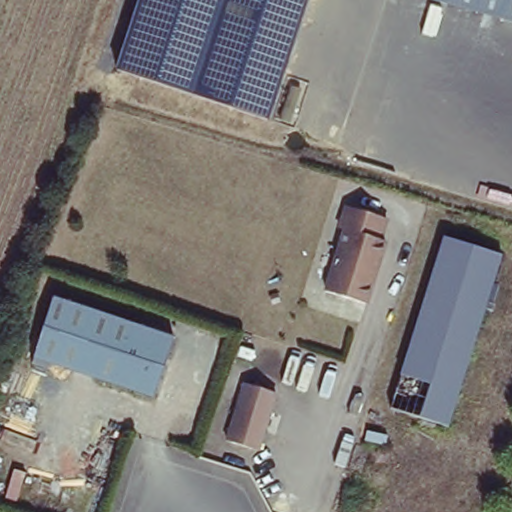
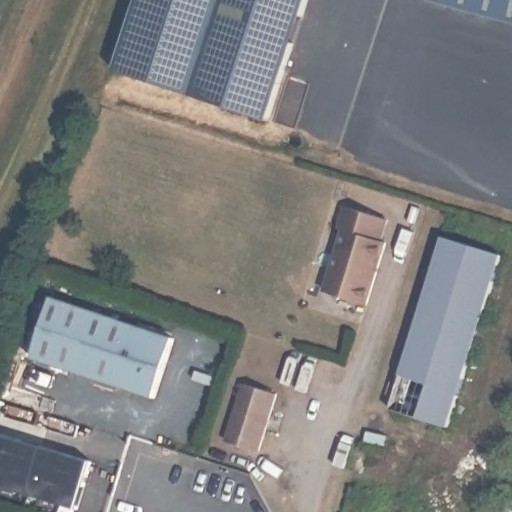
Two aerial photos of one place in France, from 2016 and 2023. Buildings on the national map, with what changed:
unchanged [(116,65),(138,0),(305,0),(267,115),(116,65)]
unchanged [(430,0),(512,0),(512,22),(430,0)]
unchanged [(382,216),(375,237),(380,239),(360,301),(318,290),(338,227),(333,225),(341,203),(382,216)]
unchanged [(504,255),(448,427),(391,409),(447,237),(504,255)]
unchanged [(57,299),(177,338),(158,397),(37,358),(57,299)]
unchanged [(277,393),(259,451),(227,441),(246,384),(277,393)]
new [(97,456),(80,508),(0,483),(0,426),(1,424),(97,456)]

